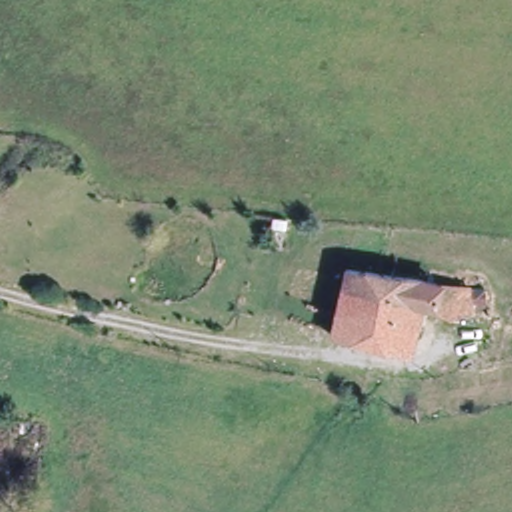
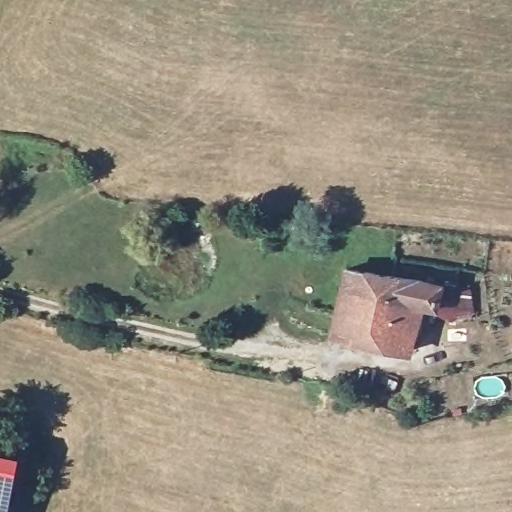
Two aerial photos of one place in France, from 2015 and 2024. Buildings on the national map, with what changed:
unchanged [(345,259),(441,284),(438,305),(417,299),(406,349),(329,329),(345,259)]
new [(0,512),(0,449),(17,453),(7,512),(0,512)]

